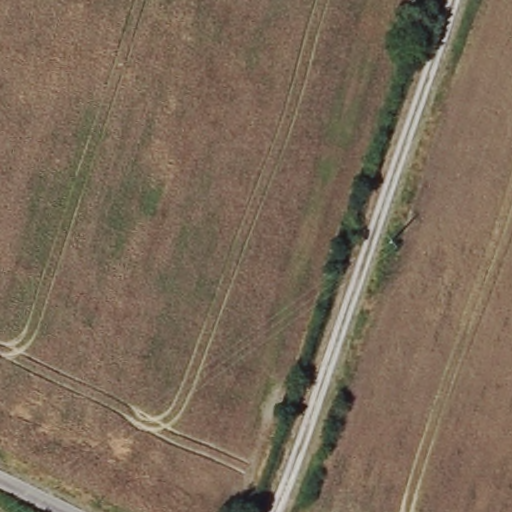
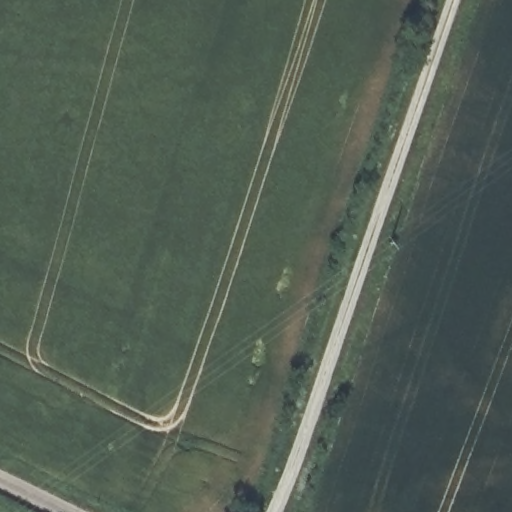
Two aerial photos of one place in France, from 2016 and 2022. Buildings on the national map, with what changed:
[]

